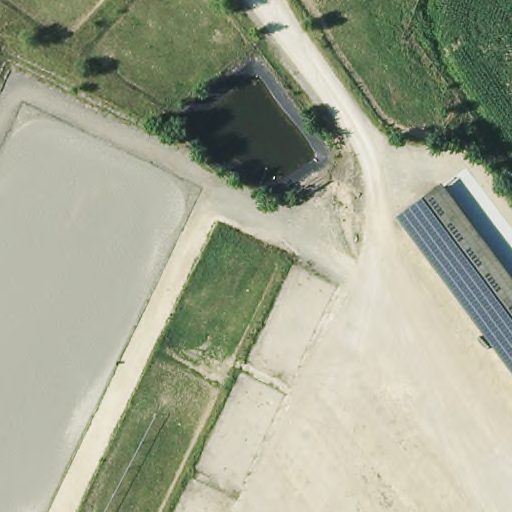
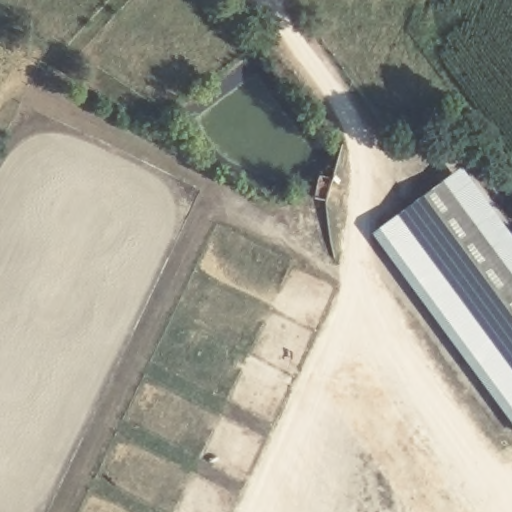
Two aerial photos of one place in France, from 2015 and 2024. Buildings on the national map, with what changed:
new [(464,173),(512,237),(512,279),(444,188),(464,173)]
unchanged [(444,188),(512,279),(512,367),(403,219),(444,188)]
new [(512,367),(512,423),(374,237),(403,219),(512,367)]

